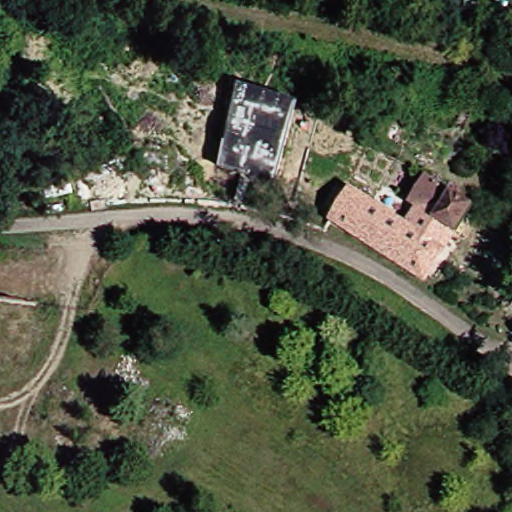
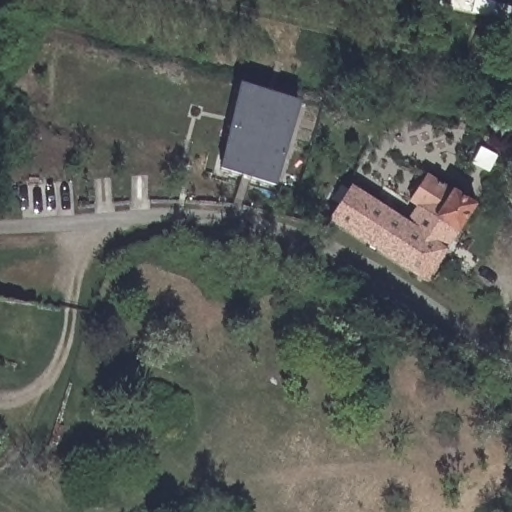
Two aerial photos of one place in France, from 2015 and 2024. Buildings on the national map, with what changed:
unchanged [(274,181),(218,167),(239,83),(297,100),(274,181)]
unchanged [(432,175),(473,201),(426,275),(332,215),(351,184),(432,235),(449,210),(421,192),(432,175)]

